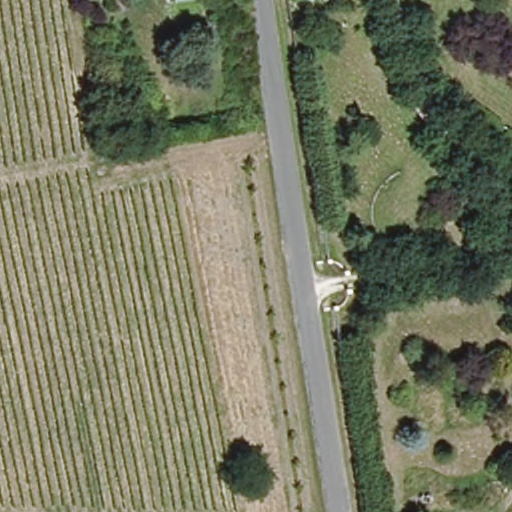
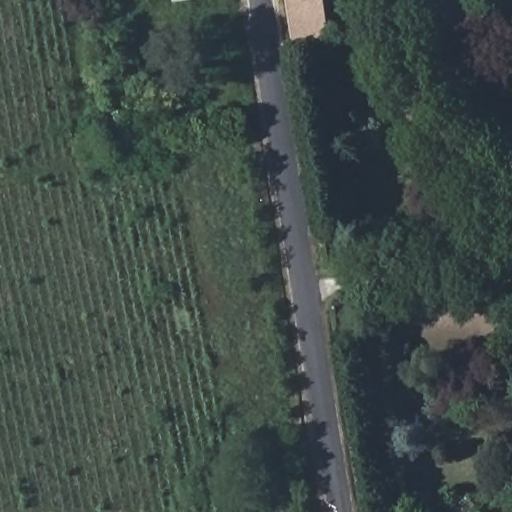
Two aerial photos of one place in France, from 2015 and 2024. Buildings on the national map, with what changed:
new [(286,0),(324,0),(329,41),(293,46),(286,0)]

